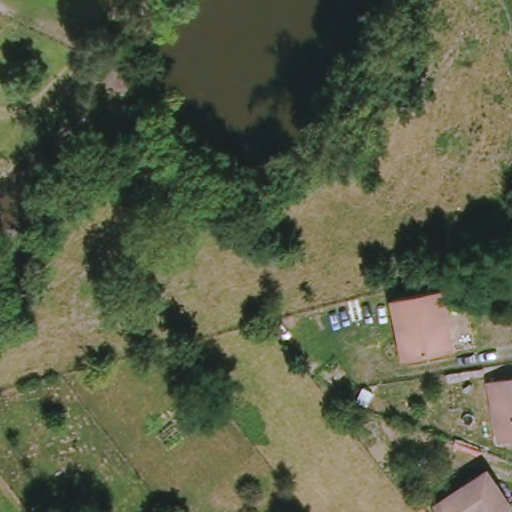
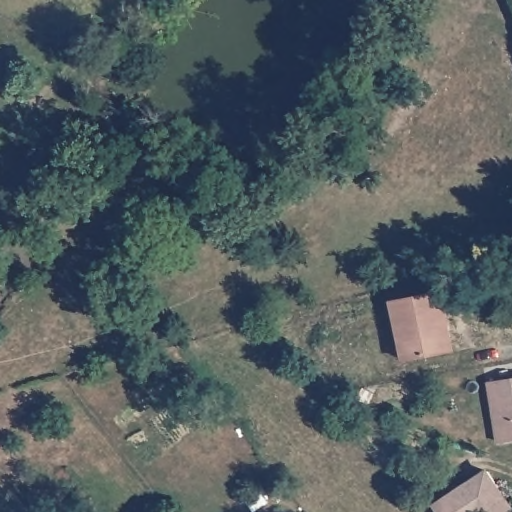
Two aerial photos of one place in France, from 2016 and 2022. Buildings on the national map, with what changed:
unchanged [(405,359),(395,314),(391,297),(443,285),(446,301),(441,302),(451,346),(405,359)]
unchanged [(512,376),(512,437),(498,439),(491,377),(512,376)]
unchanged [(497,512),(441,512),(434,501),(486,465),(510,503),(497,512)]

